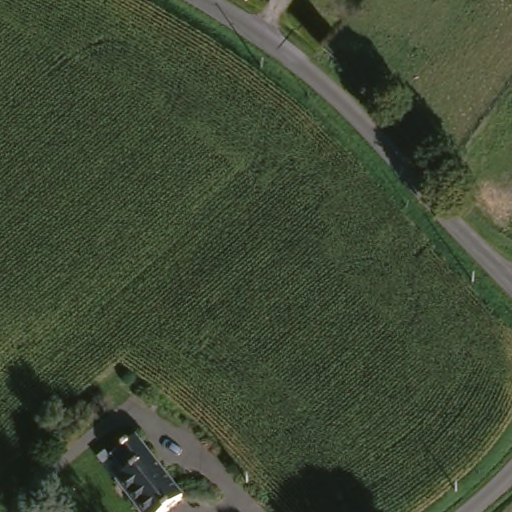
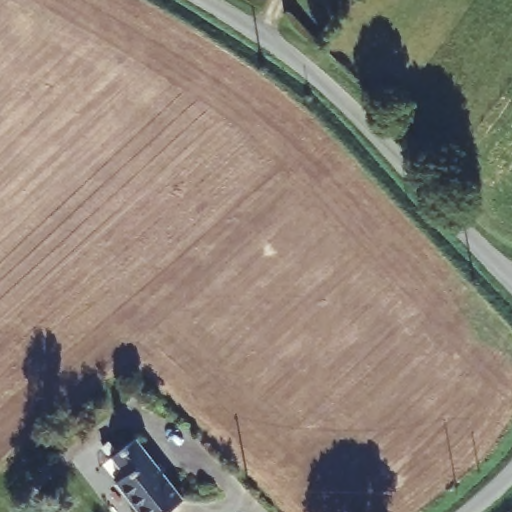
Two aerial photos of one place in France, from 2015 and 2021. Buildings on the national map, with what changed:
unchanged [(188,493),(164,512),(147,512),(121,480),(132,471),(117,453),(139,434),(188,493)]

